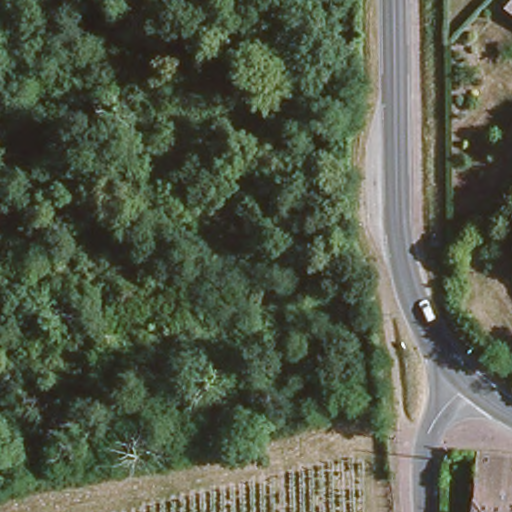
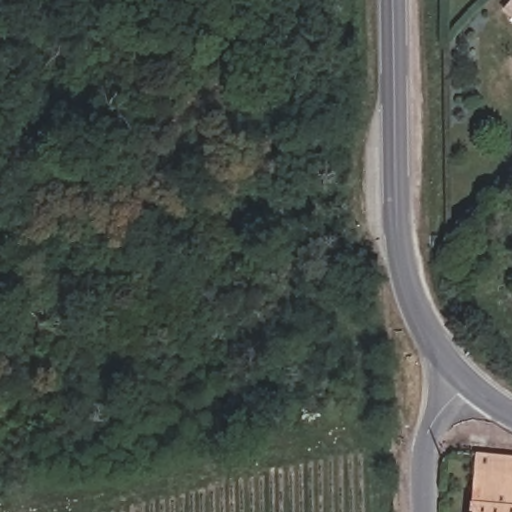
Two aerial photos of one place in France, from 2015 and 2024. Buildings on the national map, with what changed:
unchanged [(504,8),(512,0),(512,15),(504,8)]
unchanged [(477,452),(512,455),(512,512),(472,512),(477,452)]

